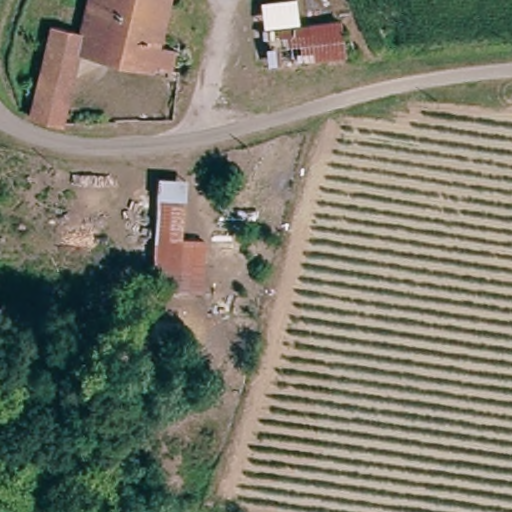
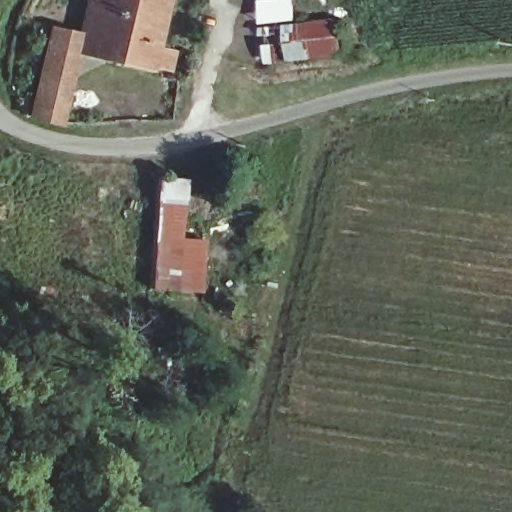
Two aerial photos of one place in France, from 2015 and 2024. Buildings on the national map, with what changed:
unchanged [(68,56),(72,39),(82,0),(159,0),(151,42),(172,47),(166,74),(68,56)]
unchanged [(264,25),(275,24),(274,6),(294,2),(297,20),(341,18),(349,59),(269,70),(264,25)]
unchanged [(26,112),(45,34),(72,39),(68,56),(53,115),(26,112)]
unchanged [(187,181),(185,237),(206,239),(204,294),(148,294),(154,177),(187,181)]
unchanged [(0,512),(0,469),(18,477),(2,512),(0,512)]

